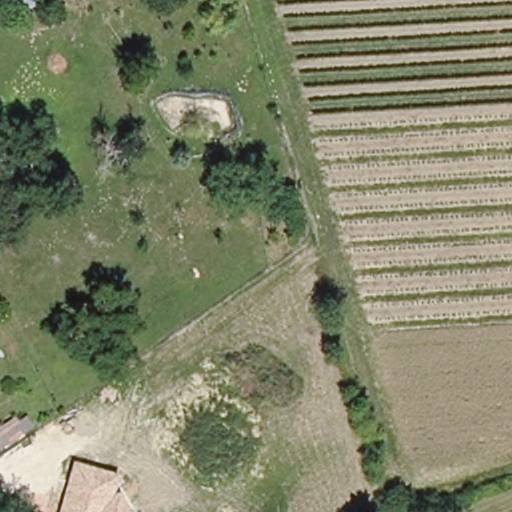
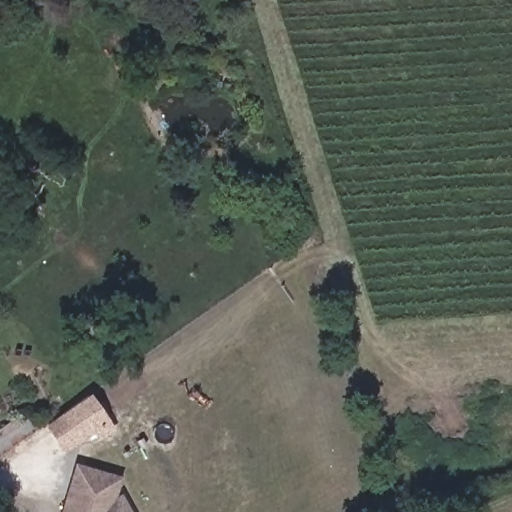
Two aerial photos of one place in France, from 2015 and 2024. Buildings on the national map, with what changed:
unchanged [(2,0),(44,0),(46,2),(10,16),(2,0)]
new [(91,393),(116,429),(101,440),(95,432),(65,453),(45,426),(91,393)]
unchanged [(116,495),(126,497),(136,512),(62,512),(74,462),(121,479),(116,495)]

